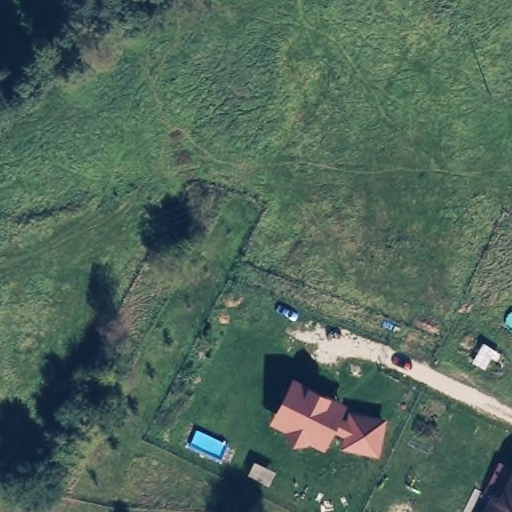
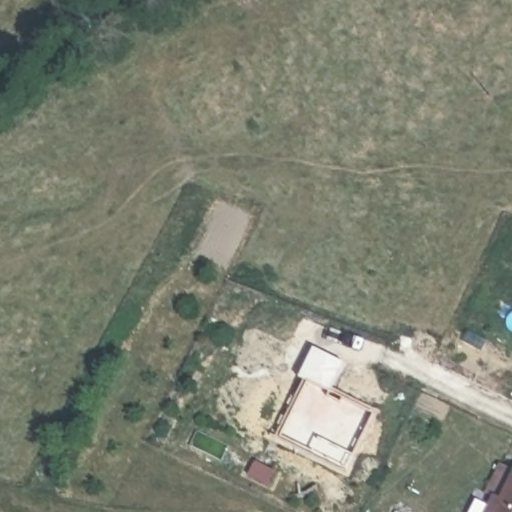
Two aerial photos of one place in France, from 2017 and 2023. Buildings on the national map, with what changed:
unchanged [(378,456),(341,448),(344,436),(333,432),(325,450),(268,425),(291,379),(346,406),(341,417),(347,420),(349,412),(386,418),(378,456)]
unchanged [(486,512),(493,495),(488,492),(503,462),(512,466),(512,512),(486,512)]

